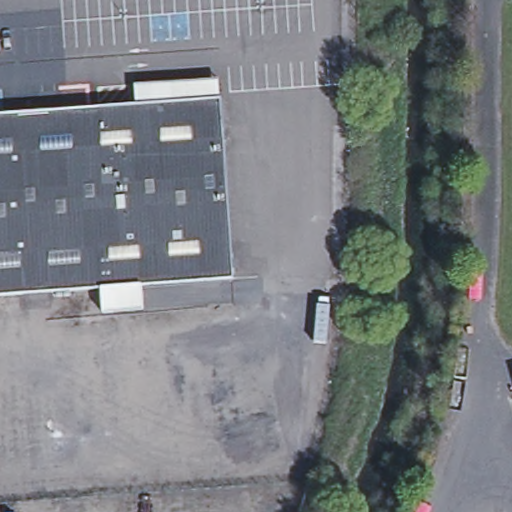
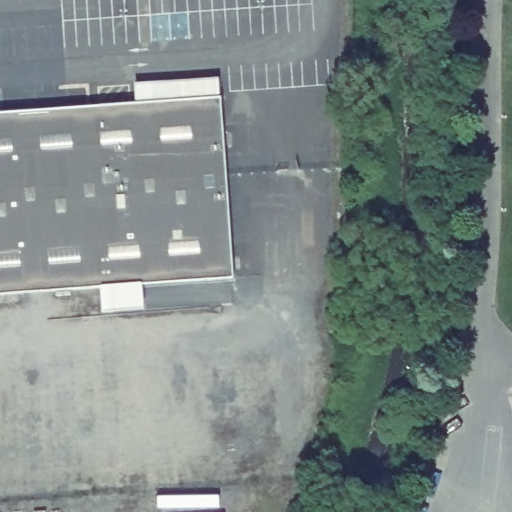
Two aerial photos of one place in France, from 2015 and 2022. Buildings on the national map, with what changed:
unchanged [(103,313),(101,288),(0,295),(0,114),(172,100),(171,82),(218,78),(219,97),(221,97),(233,278),(141,285),(143,310),(114,312),(103,313)]

